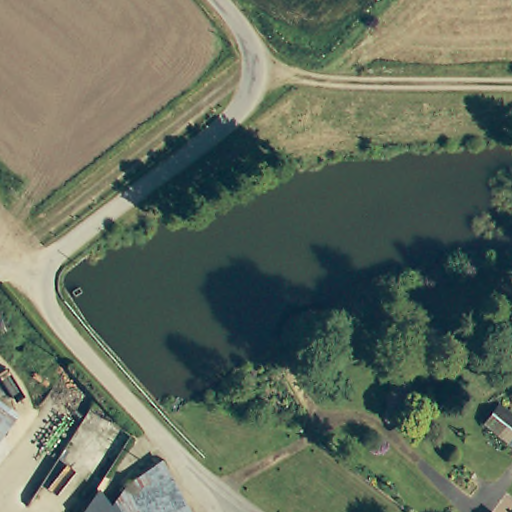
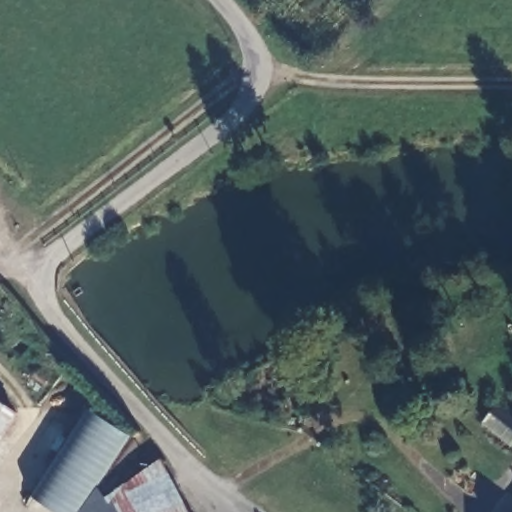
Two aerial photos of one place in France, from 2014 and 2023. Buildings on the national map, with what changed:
unchanged [(0,424),(0,401),(11,410),(0,424)]
unchanged [(498,403),(512,414),(512,443),(511,445),(483,423),(498,403)]
new [(90,410),(130,437),(80,512),(55,512),(32,496),(90,410)]
unchanged [(160,467),(185,512),(113,512),(124,492),(160,467)]
unchanged [(112,512),(87,512),(99,495),(112,512)]

